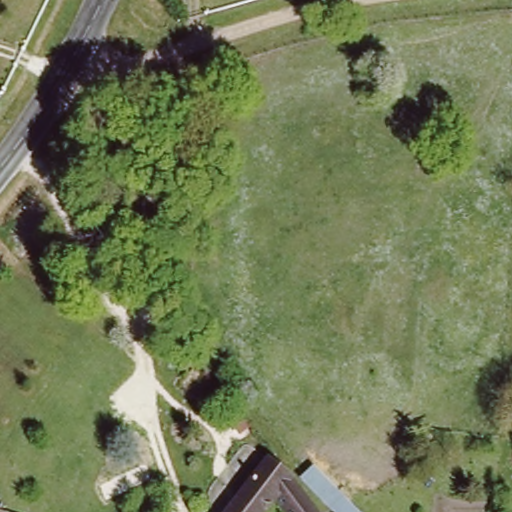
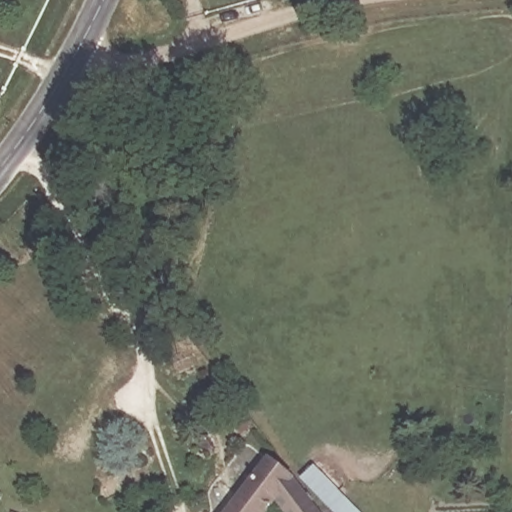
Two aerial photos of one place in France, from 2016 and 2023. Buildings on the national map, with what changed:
unchanged [(300,490),(321,508),(317,512),(278,512),(270,506),(265,512),(226,512),(267,462),(300,490)]
unchanged [(367,512),(338,512),(304,478),(317,465),(367,512)]

